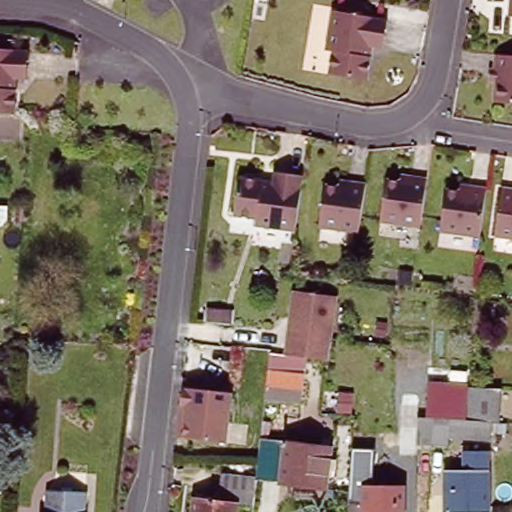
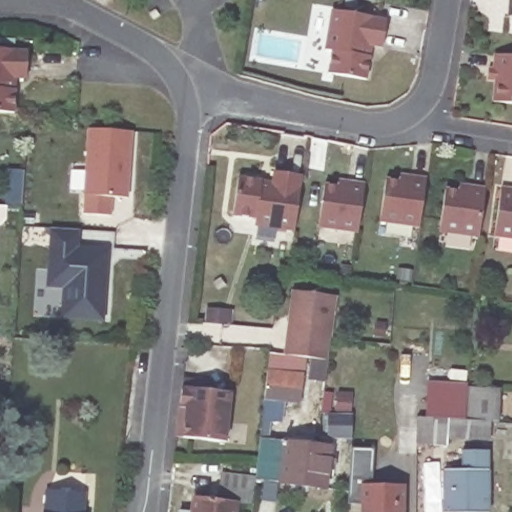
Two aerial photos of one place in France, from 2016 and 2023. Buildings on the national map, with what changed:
unchanged [(512,0),(512,18),(510,18),(512,0)]
unchanged [(387,16),(383,45),(373,44),(368,77),(327,70),(331,50),(324,49),(331,7),(387,16)]
unchanged [(26,49),(24,79),(16,79),(14,113),(0,113),(0,48),(26,49)]
unchanged [(497,103),(498,85),(490,84),(492,69),(496,69),(498,55),(512,57),(512,104),(497,103)]
new [(82,195),(86,129),(133,131),(128,198),(82,195)]
unchanged [(305,174),(297,229),(253,224),(254,215),(232,213),(237,176),(272,180),(273,170),(305,174)]
unchanged [(403,178),(404,171),(429,175),(422,223),(382,216),(388,175),(403,178)]
unchanged [(350,179),(350,176),(367,178),(361,226),(319,221),(324,176),(350,179)]
unchanged [(463,188),(464,181),(489,186),(482,234),(443,227),(449,186),(463,188)]
unchanged [(498,237),(505,188),(512,190),(512,240),(498,237)]
new [(61,319),(61,288),(48,288),(48,277),(44,277),(48,230),(79,231),(78,247),(104,247),(108,251),(104,321),(61,319)]
unchanged [(281,351),(291,287),(334,293),(324,357),(281,351)]
unchanged [(301,369),(299,398),(261,394),(264,364),(301,369)]
unchanged [(174,407),(177,378),(203,381),(203,388),(225,390),(221,439),(178,435),(171,435),(174,407)]
unchanged [(462,416),(428,416),(429,382),(464,385),(462,416)]
unchanged [(498,386),(498,416),(489,416),(462,416),(464,385),(498,386)]
unchanged [(352,413),(352,426),(337,425),(337,412),(352,413)]
unchanged [(428,416),(462,416),(489,416),(489,432),(448,433),(448,444),(415,445),(416,416),(428,416)]
unchanged [(328,449),(326,462),(331,463),(330,471),(326,471),(323,492),(252,485),(252,483),(254,467),(257,443),(328,449)]
unchanged [(362,512),(362,504),(349,503),(353,445),(371,445),(371,482),(405,483),(404,512),(362,512)]
unchanged [(490,512),(447,512),(447,471),(464,471),(464,457),(489,458),(490,512)]
unchanged [(221,480),(252,483),(252,485),(249,509),(235,507),(234,512),(190,512),(191,503),(219,505),(221,480)]
unchanged [(85,503),(84,512),(52,512),(53,500),(85,503)]

